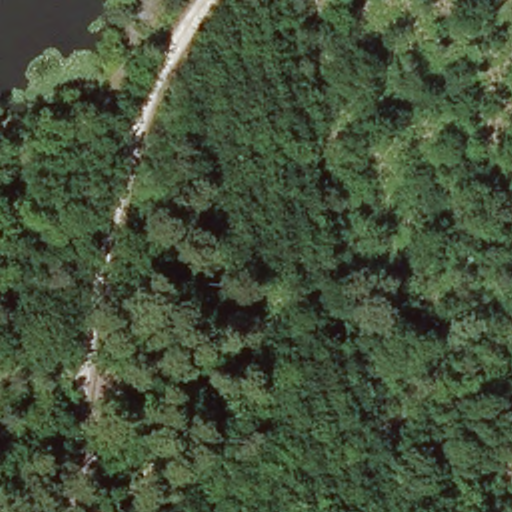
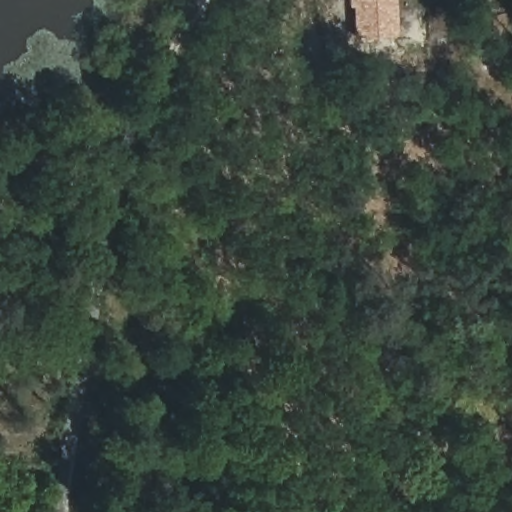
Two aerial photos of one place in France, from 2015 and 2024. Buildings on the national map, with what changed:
new [(352,37),(351,6),(346,6),(346,0),(394,0),(396,36),(352,37)]

